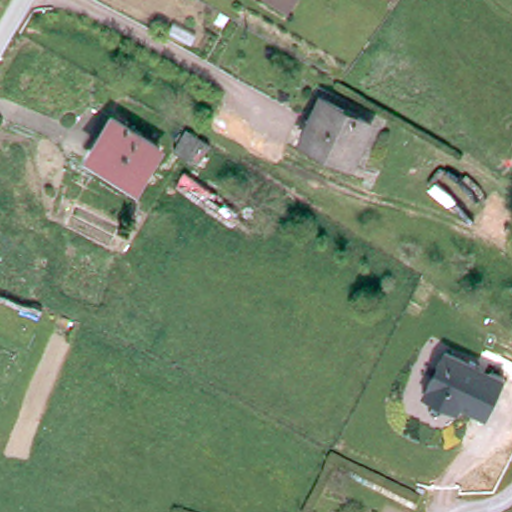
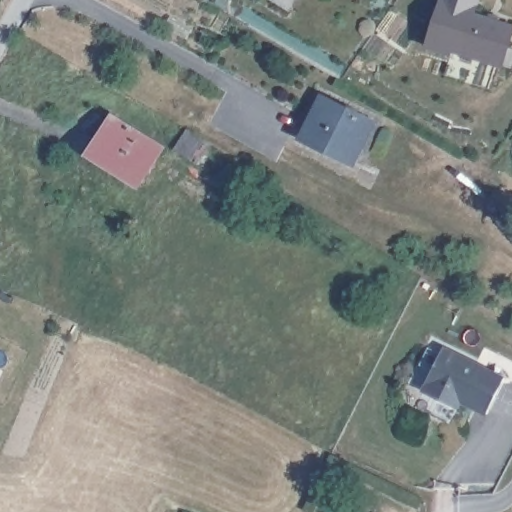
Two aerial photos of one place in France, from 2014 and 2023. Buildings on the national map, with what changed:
unchanged [(278,0),(296,0),(292,8),(278,0)]
new [(512,25),(512,45),(505,69),(454,53),(453,56),(426,48),(441,0),(482,0),(478,13),(512,25)]
unchanged [(354,161),(305,137),(325,97),(374,121),(354,161)]
unchanged [(135,186),(89,157),(112,121),(157,151),(135,186)]
unchanged [(172,154),(185,133),(208,148),(195,168),(172,154)]
unchanged [(448,347),(507,376),(490,412),(464,400),(460,406),(427,390),(448,347)]

